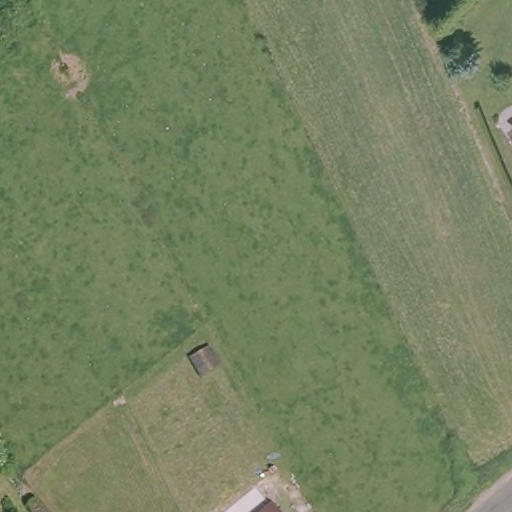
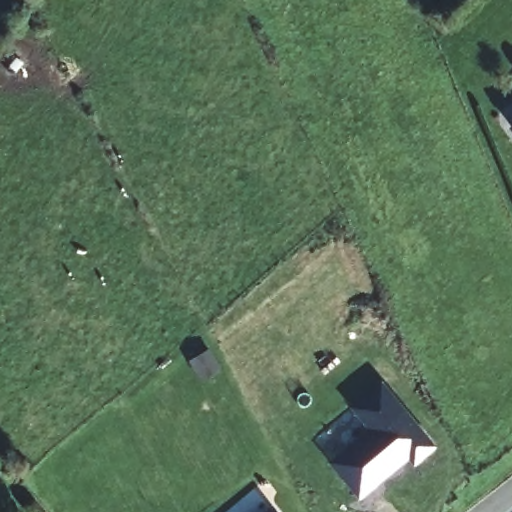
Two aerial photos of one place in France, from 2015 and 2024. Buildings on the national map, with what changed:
new [(415,464),(408,456),(357,498),(327,461),(367,428),(352,403),(381,379),(437,445),(415,464)]
unchanged [(273,512),(271,512),(272,511),(273,512)]

